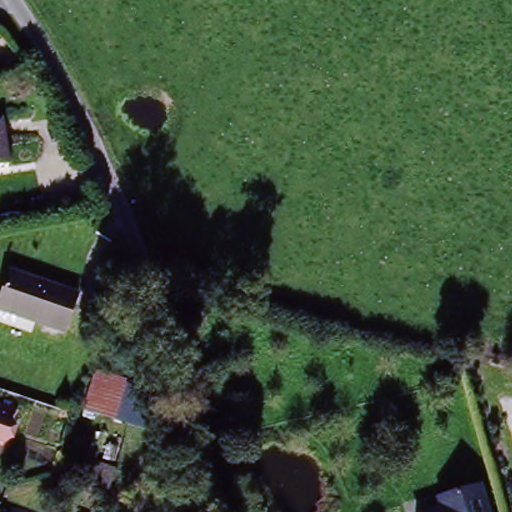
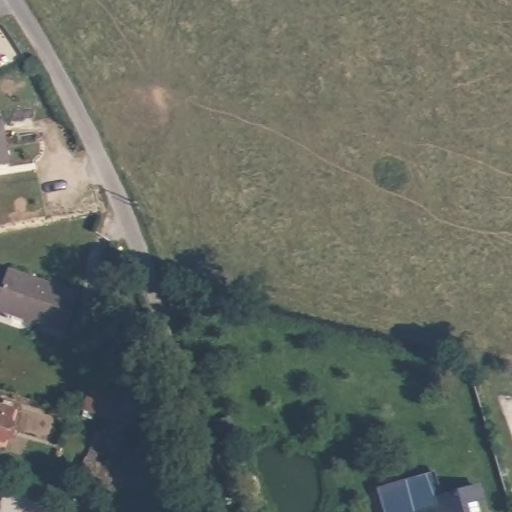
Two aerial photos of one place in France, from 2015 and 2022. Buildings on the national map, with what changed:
unchanged [(0,115),(6,162),(0,163),(0,116),(0,115)]
unchanged [(77,296),(63,333),(0,310),(0,301),(10,272),(77,296)]
unchanged [(115,427),(78,413),(92,370),(127,382),(115,427)]
unchanged [(10,407),(0,440),(0,404),(10,407)]
unchanged [(110,497),(98,494),(87,482),(82,472),(82,456),(118,468),(110,497)]
new [(440,500),(435,512),(384,512),(377,489),(435,473),(440,500)]
unchanged [(440,500),(472,488),(481,512),(435,512),(440,500)]

